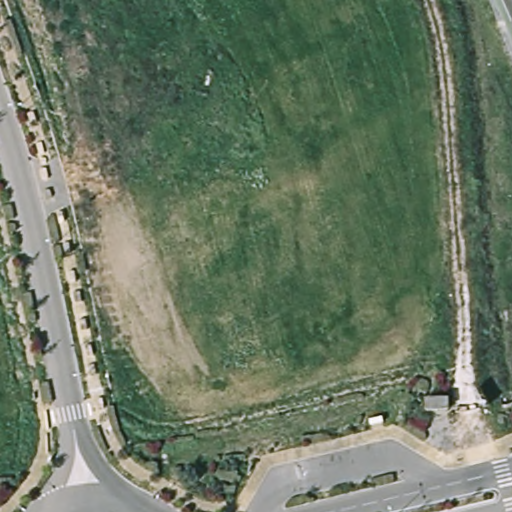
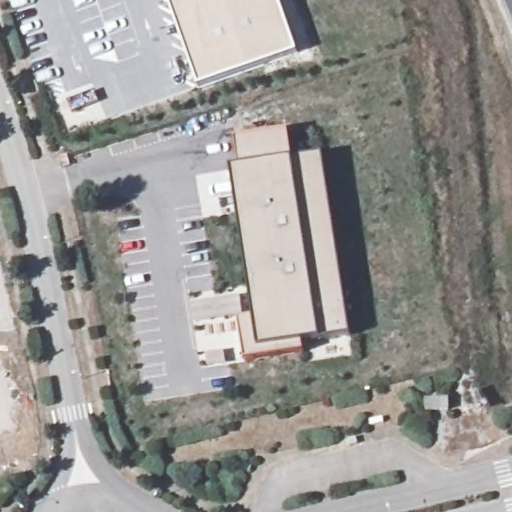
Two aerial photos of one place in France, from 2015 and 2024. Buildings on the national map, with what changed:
new [(197,88),(166,0),(266,0),(286,56),(197,88)]
new [(239,168),(234,139),(288,130),(293,159),(323,155),(351,336),(302,344),(303,353),(244,361),(237,319),(253,318),(230,169),(239,168)]

